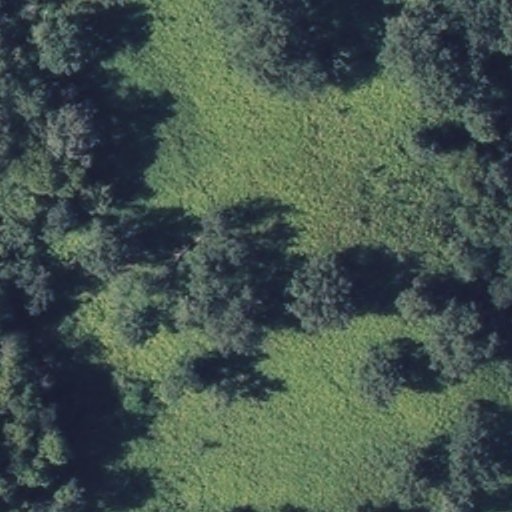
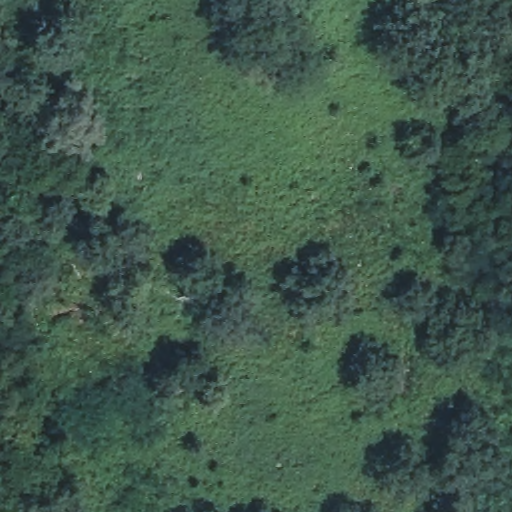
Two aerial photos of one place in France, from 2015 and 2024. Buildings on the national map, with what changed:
[]

